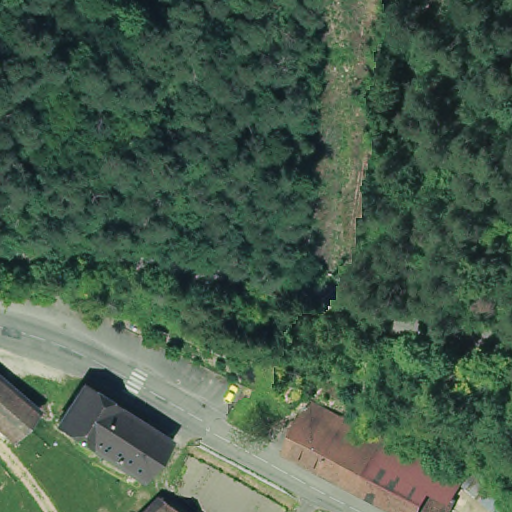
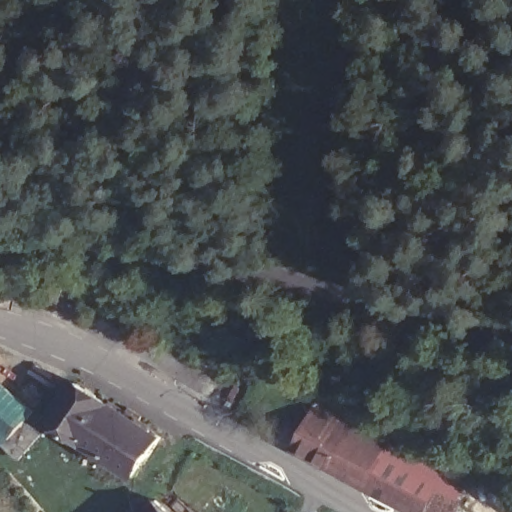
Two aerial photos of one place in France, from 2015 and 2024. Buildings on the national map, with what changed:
unchanged [(40,261),(33,283),(2,273),(10,252),(40,261)]
unchanged [(135,482),(53,423),(77,378),(160,439),(135,482)]
unchanged [(0,426),(0,381),(30,408),(11,436),(0,426)]
unchanged [(316,389),(476,462),(447,512),(416,512),(291,450),(316,389)]
unchanged [(175,512),(142,512),(156,493),(175,512)]

